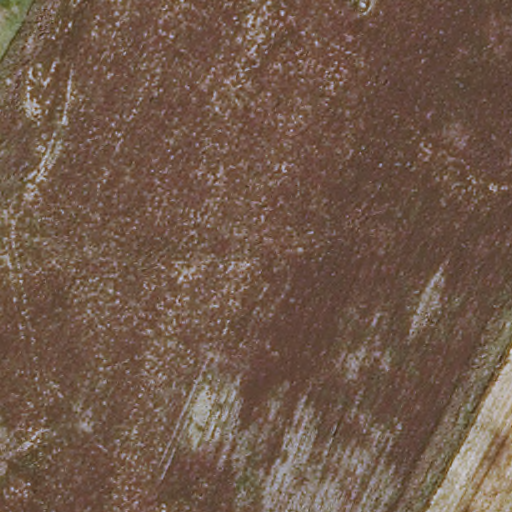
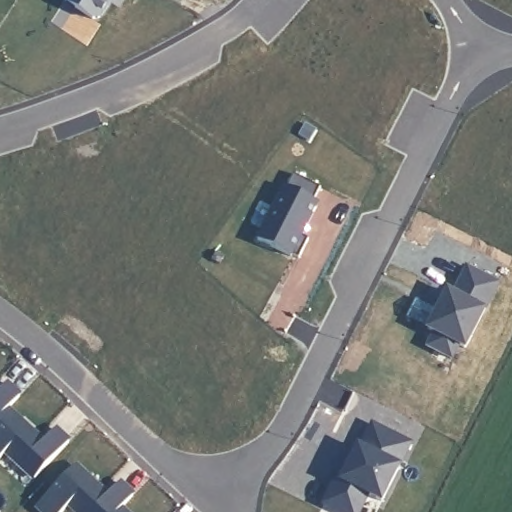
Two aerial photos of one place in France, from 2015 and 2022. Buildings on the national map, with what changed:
new [(104,18),(94,22),(63,2),(65,0),(116,0),(104,18)]
new [(321,190),(315,202),(320,204),(303,238),(309,241),(300,260),(256,241),(285,187),(289,189),(296,175),(321,190)]
new [(417,300),(439,312),(449,292),(454,296),(469,269),(499,285),(466,350),(459,346),(452,360),(429,347),(436,334),(429,330),(407,318),(417,300)]
new [(33,481),(5,455),(0,461),(0,390),(8,382),(23,395),(11,408),(45,440),(58,428),(71,440),(33,481)]
new [(384,503),(370,497),(363,512),(333,512),(324,507),(357,445),(361,446),(373,423),(414,443),(384,503)]
new [(65,512),(38,512),(35,510),(78,465),(109,494),(123,481),(136,495),(124,508),(129,512),(72,512),(68,508),(65,512)]

